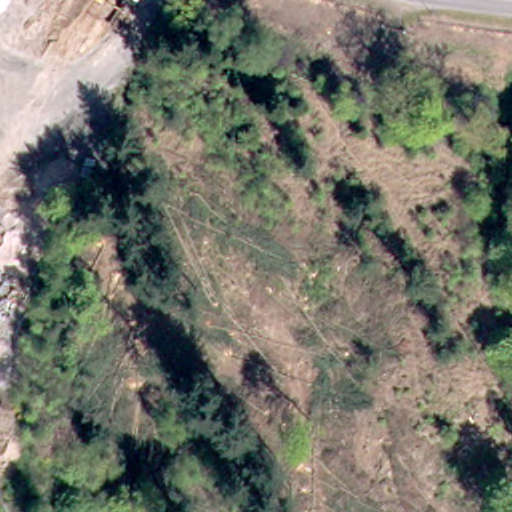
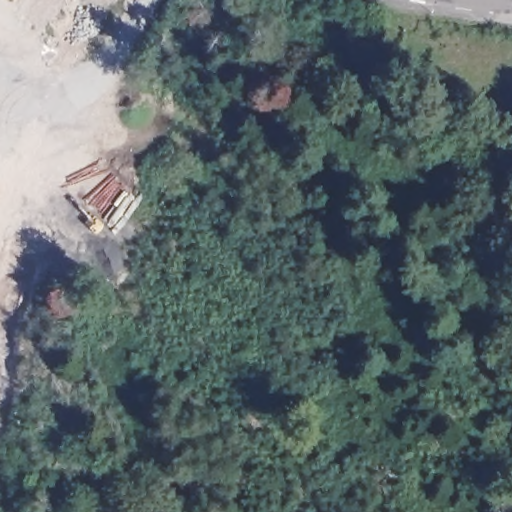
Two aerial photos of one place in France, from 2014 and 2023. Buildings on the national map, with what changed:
[]

